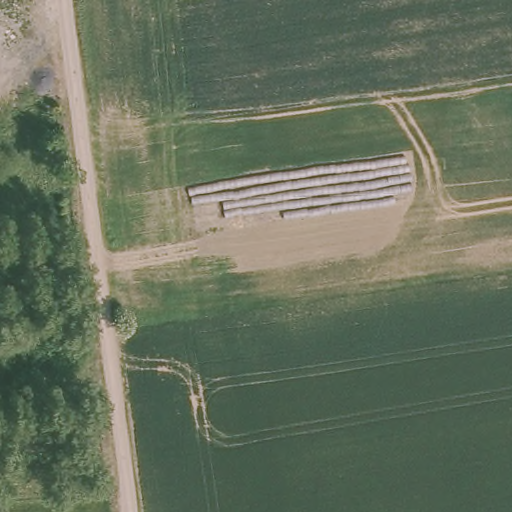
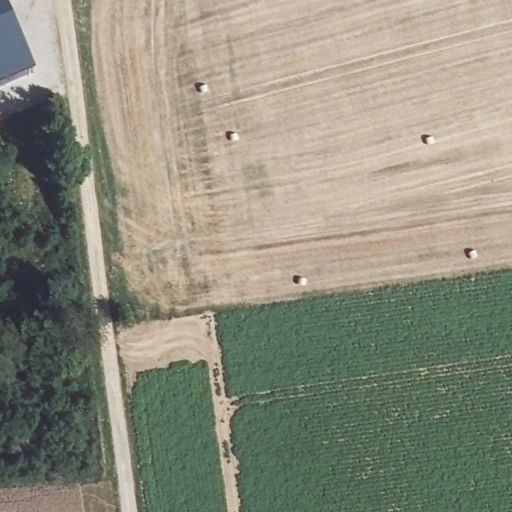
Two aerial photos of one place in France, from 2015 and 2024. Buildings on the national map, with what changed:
new [(0,86),(0,0),(6,0),(38,70),(0,86)]

